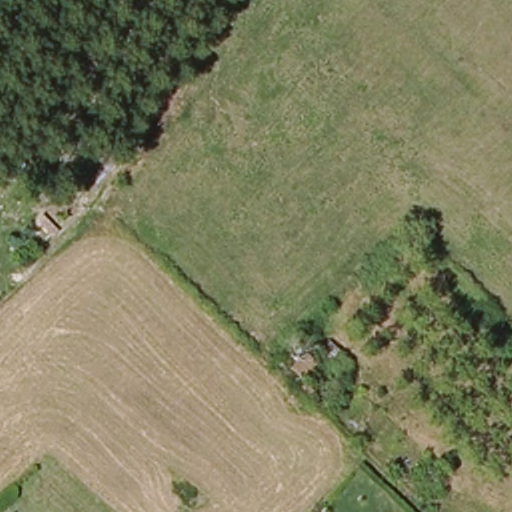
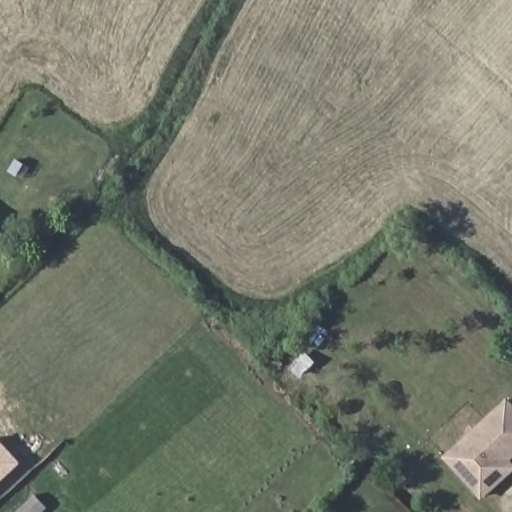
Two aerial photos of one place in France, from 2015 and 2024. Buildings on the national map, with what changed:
new [(443,455),(507,396),(512,402),(512,458),(510,459),(512,461),(512,471),(481,499),(443,455)]
new [(17,462),(0,479),(0,442),(17,462)]

